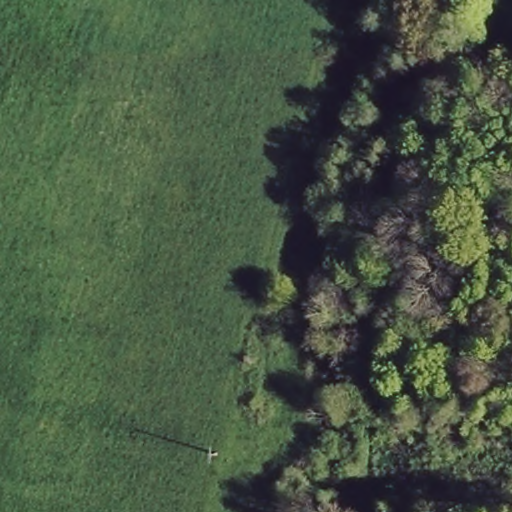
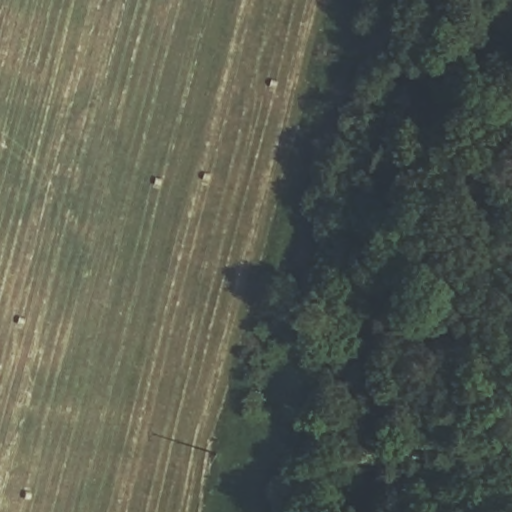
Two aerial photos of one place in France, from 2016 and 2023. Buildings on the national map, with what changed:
[]

